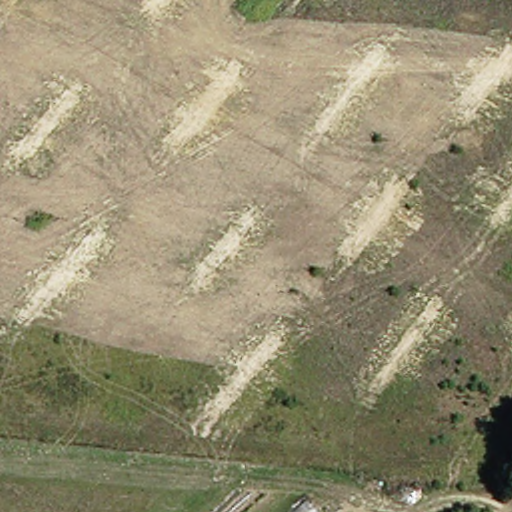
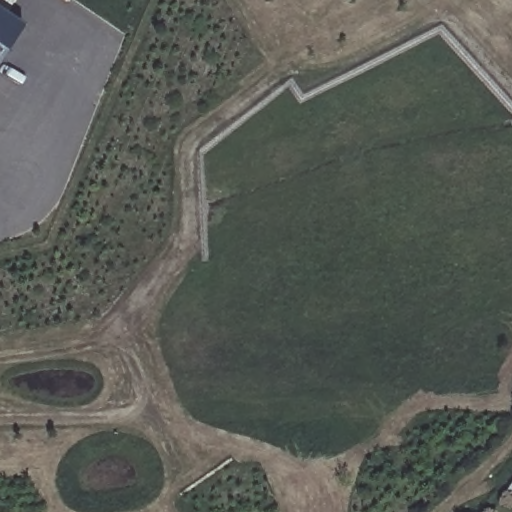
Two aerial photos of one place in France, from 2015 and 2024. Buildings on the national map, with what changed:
new [(24,28),(0,63),(0,11),(24,28)]

